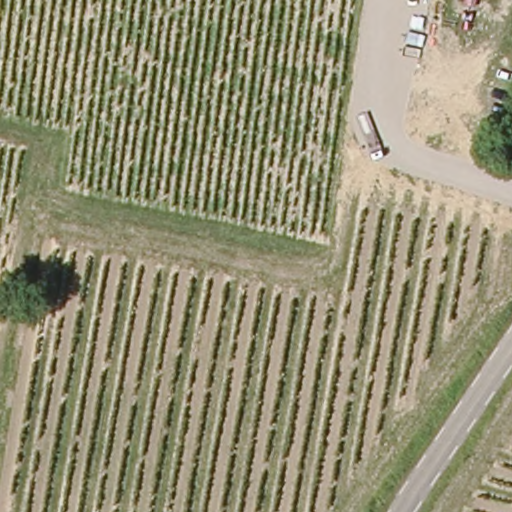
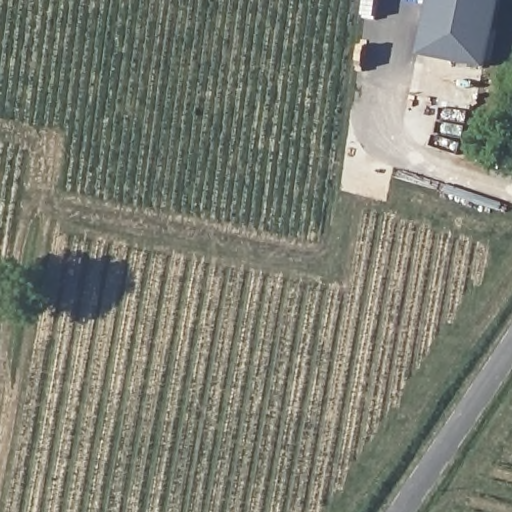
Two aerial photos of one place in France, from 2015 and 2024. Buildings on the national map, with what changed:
new [(485,70),(418,57),(430,0),(497,0),(485,70)]

